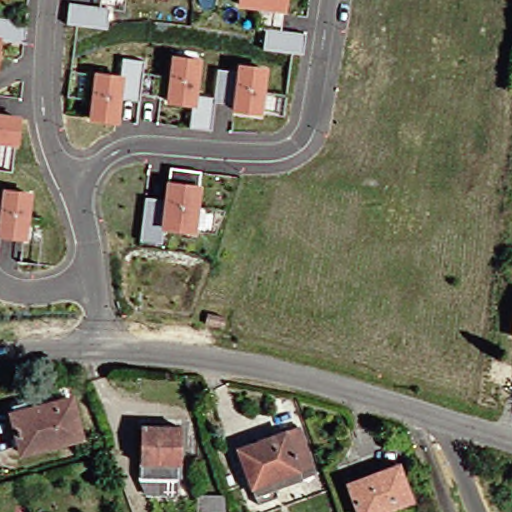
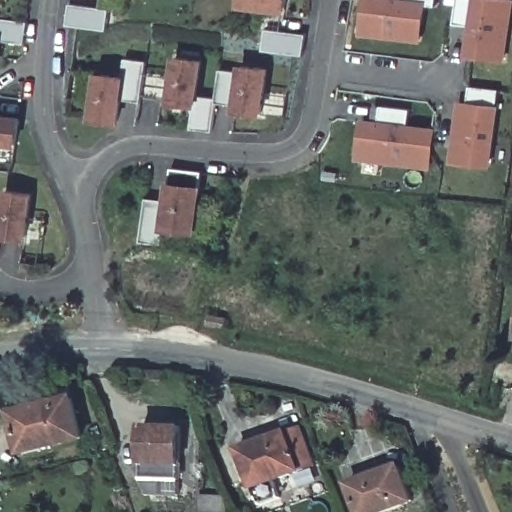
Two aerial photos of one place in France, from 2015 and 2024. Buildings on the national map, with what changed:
unchanged [(287,0),(286,13),(238,7),(239,0),(287,0)]
new [(426,6),(421,42),(360,34),(363,0),(437,0),(436,8),(426,6)]
new [(505,63),(465,59),(466,39),(452,37),(457,0),(504,0),(512,1),(512,5),(505,63)]
unchanged [(110,8),(107,29),(67,24),(70,3),(110,8)]
unchanged [(24,44),(1,41),(0,52),(0,18),(27,22),(24,44)]
unchanged [(305,33),(303,55),(263,50),(266,29),(305,33)]
unchanged [(269,69),(263,115),(232,113),(233,106),(215,104),(212,130),(193,128),(195,107),(166,104),(172,56),(200,60),(196,96),(216,98),(220,71),(237,73),(239,64),(269,69)]
unchanged [(122,75),(124,59),(145,62),(140,103),(122,100),(120,125),(89,121),(91,101),(70,98),(72,73),(95,73),(122,75)]
unchanged [(499,90),(491,169),(451,164),(458,101),(468,102),(470,88),(499,90)]
new [(408,125),(436,128),(430,170),(355,160),(360,119),(371,120),(373,105),(410,110),(408,125)]
unchanged [(17,148),(0,145),(0,113),(21,115),(17,148)]
unchanged [(170,183),(171,169),(202,172),(202,185),(197,234),(165,230),(163,244),(141,242),(146,197),(165,199),(166,182),(170,183)]
unchanged [(27,240),(2,238),(0,248),(0,210),(2,189),(32,193),(27,240)]
unchanged [(214,329),(196,327),(198,316),(215,319),(214,329)]
unchanged [(510,336),(512,324),(512,336),(510,336)]
unchanged [(11,458),(1,417),(62,403),(72,443),(11,458)]
unchanged [(171,489),(140,487),(132,470),(132,421),(170,423),(171,489)]
unchanged [(246,499),(227,452),(290,431),(308,478),(246,499)]
unchanged [(390,471),(404,504),(384,512),(348,512),(340,490),(390,471)]
unchanged [(216,503),(216,512),(192,512),(192,502),(216,503)]

